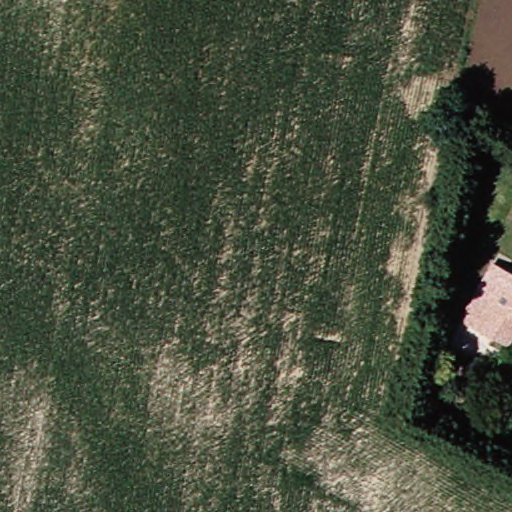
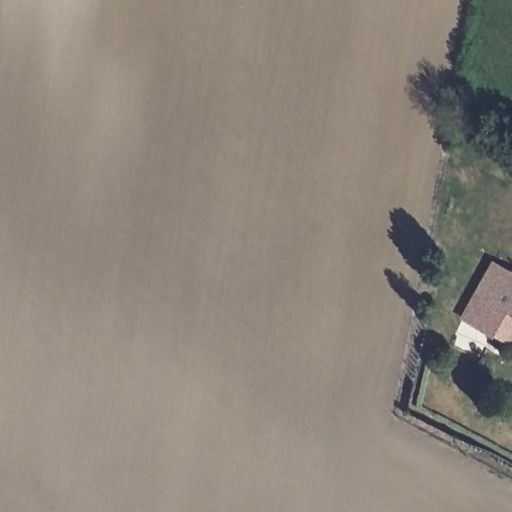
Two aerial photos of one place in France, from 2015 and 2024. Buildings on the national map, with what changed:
unchanged [(512,312),(503,308),(487,331),(458,312),(488,260),(512,272),(512,312)]

